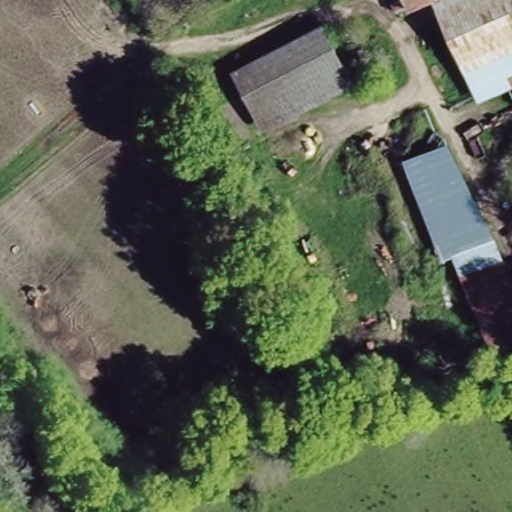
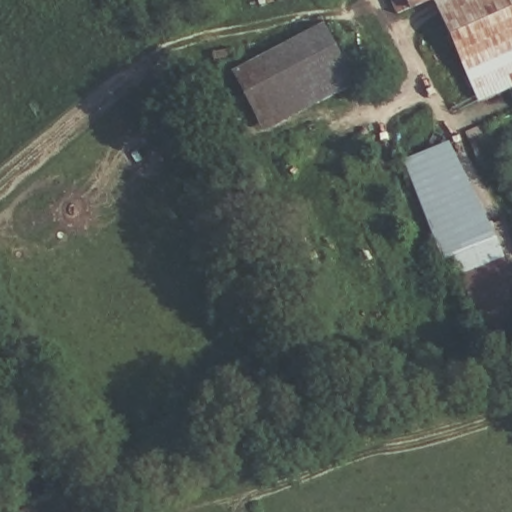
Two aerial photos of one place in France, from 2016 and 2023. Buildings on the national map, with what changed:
unchanged [(440,5),(397,24),(387,0),(451,0),(444,3),(440,5)]
unchanged [(480,101),(440,5),(451,0),(512,0),(512,87),(480,101)]
unchanged [(354,84),(264,130),(227,74),(320,25),(354,84)]
unchanged [(495,232),(512,278),(512,326),(491,333),(460,247),(439,258),(407,176),(455,152),(495,232)]

